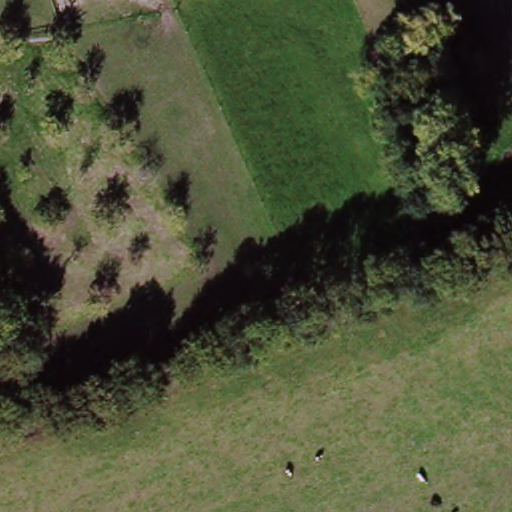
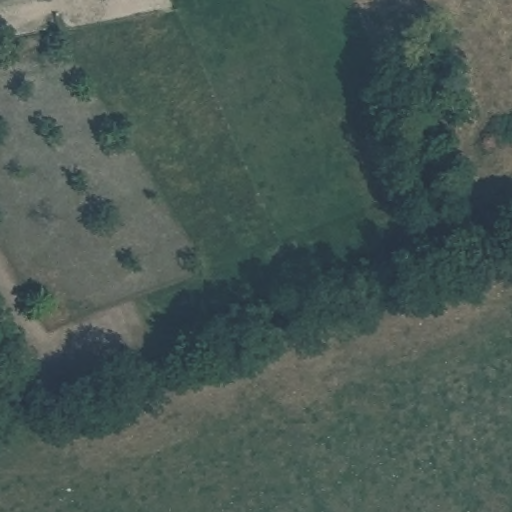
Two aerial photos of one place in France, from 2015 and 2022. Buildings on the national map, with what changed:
[]

